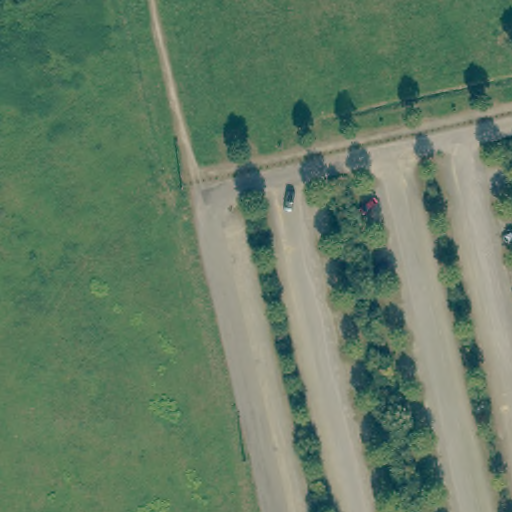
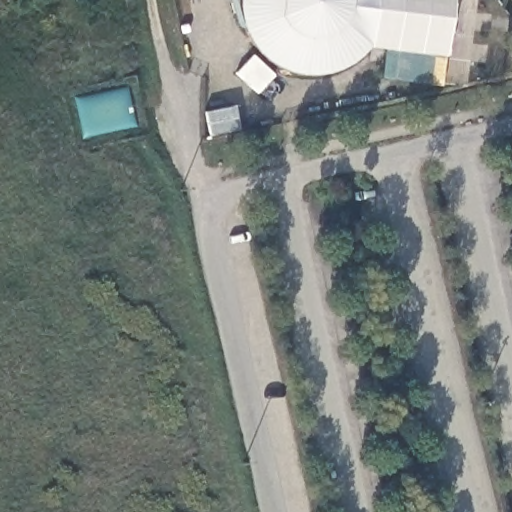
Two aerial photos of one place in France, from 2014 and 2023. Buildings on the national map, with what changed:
new [(441,85),(382,77),(385,49),(369,48),(359,58),(339,71),(323,75),(305,76),(286,71),(273,64),(270,62),(253,46),(243,31),(239,10),(240,0),(453,0),(445,57),(441,85)]

